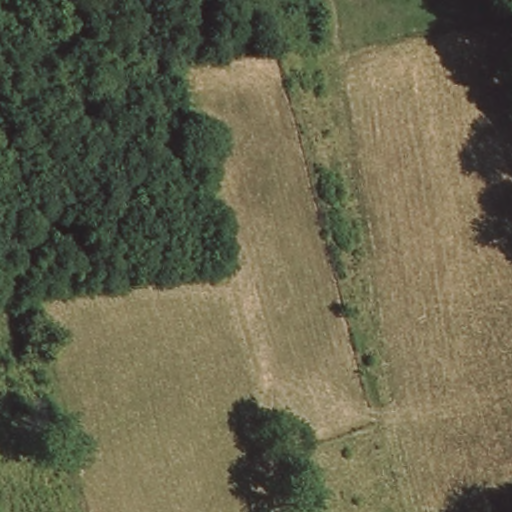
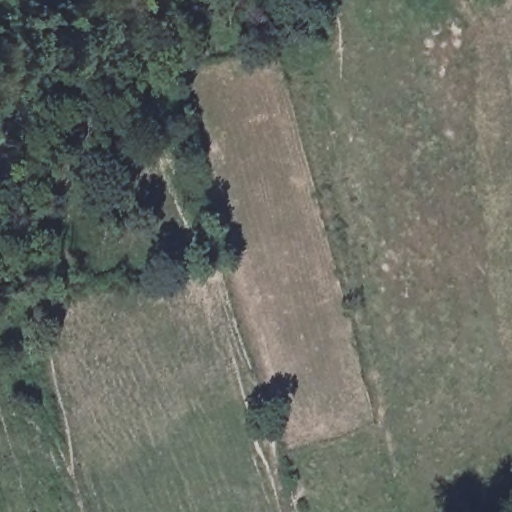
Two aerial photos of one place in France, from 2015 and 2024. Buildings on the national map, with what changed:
[]

